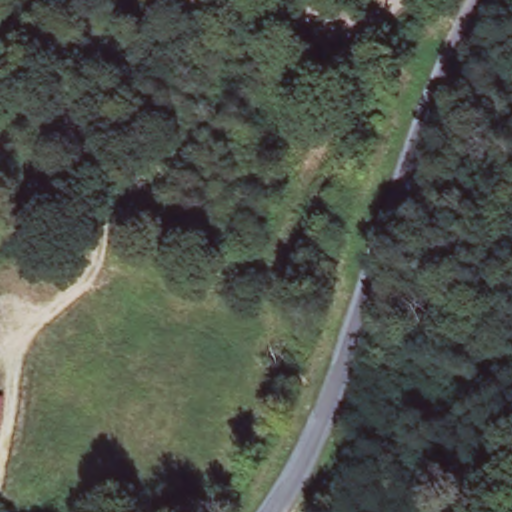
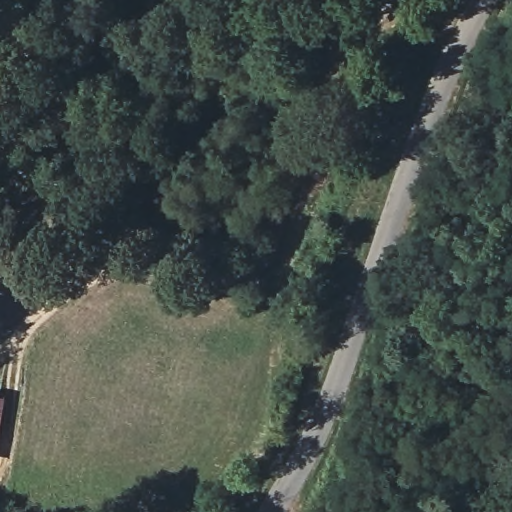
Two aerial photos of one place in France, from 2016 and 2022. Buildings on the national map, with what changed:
unchanged [(6,397),(0,433),(0,396),(6,397)]

